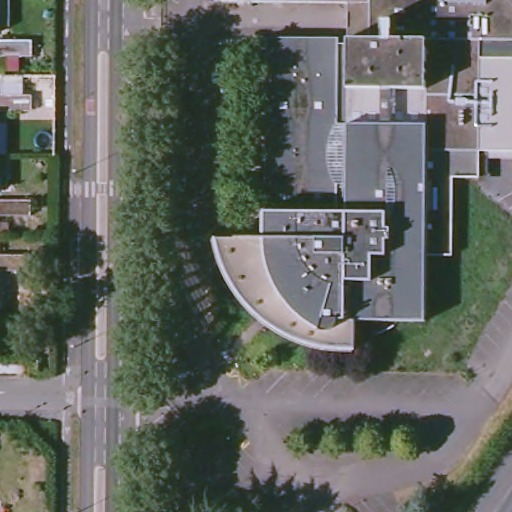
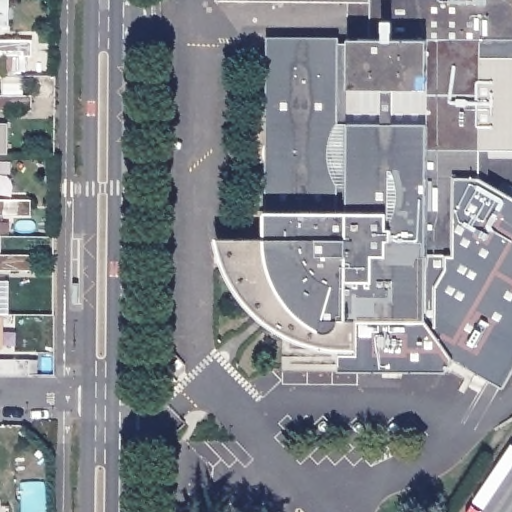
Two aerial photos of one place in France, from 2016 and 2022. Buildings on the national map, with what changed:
unchanged [(480,39),(477,174),(452,175),(450,252),(423,253),(422,318),(354,320),(353,347),(336,347),(317,345),(297,337),(273,325),(252,307),(235,287),(222,265),(215,237),(262,234),(262,210),(265,39),(346,37),(367,35),(368,0),(512,0),(512,39),(480,39)]
unchanged [(32,54),(2,52),(0,52),(0,38),(32,38),(32,54)]
new [(353,347),(354,320),(422,318),(423,253),(450,252),(452,180),(452,175),(477,174),(480,39),(512,39),(512,158),(488,159),(488,183),(512,197),(512,372),(502,388),(452,358),(445,370),(339,371),(340,347),(353,347)]
unchanged [(31,107),(0,106),(0,93),(31,94),(31,107)]
unchanged [(31,214),(1,213),(0,213),(0,198),(30,199),(31,214)]
unchanged [(30,268),(0,268),(0,254),(30,254),(30,268)]
unchanged [(27,373),(0,373),(0,358),(28,358),(27,373)]

